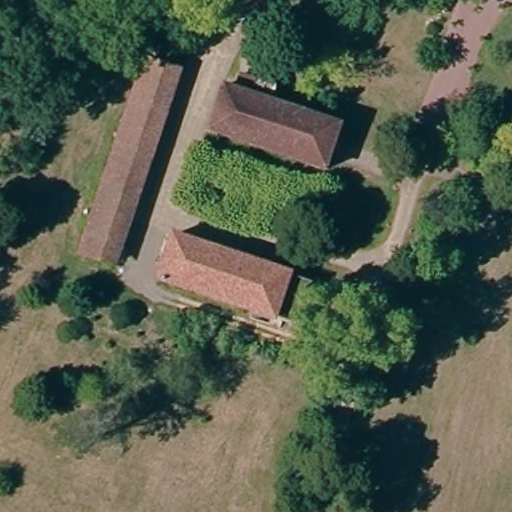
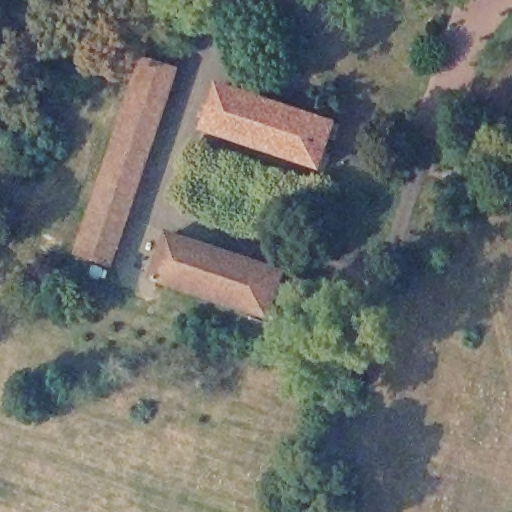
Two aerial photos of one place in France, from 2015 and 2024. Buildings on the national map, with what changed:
unchanged [(0,9),(0,0),(13,0),(10,11),(0,9)]
unchanged [(150,68),(156,46),(191,57),(185,80),(170,127),(135,115),(150,68)]
unchanged [(216,138),(231,89),(241,91),(244,80),(262,86),(260,98),(350,129),(337,176),(216,138)]
unchanged [(147,199),(112,186),(135,115),(170,127),(147,199)]
unchanged [(94,248),(112,186),(147,199),(125,270),(90,259),(94,248)]
unchanged [(154,280),(166,234),(287,271),(275,317),(154,280)]
unchanged [(287,271),(316,282),(302,328),(275,317),(287,271)]

